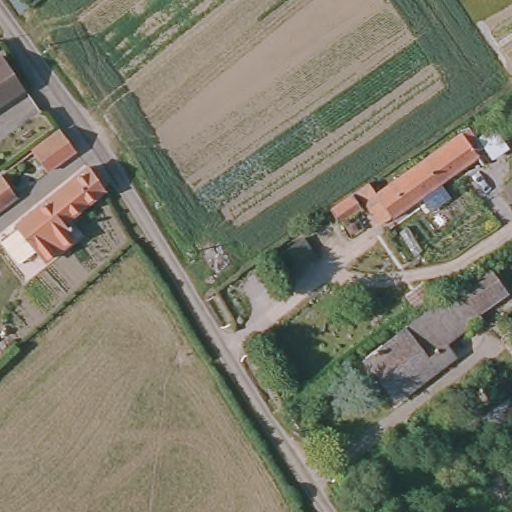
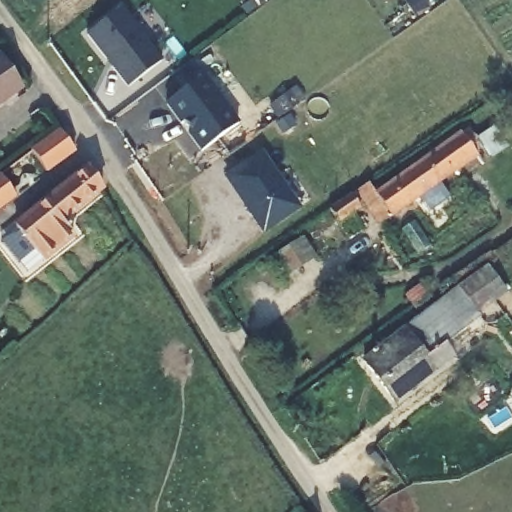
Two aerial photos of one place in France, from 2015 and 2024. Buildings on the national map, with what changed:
new [(120,8),(162,61),(127,87),(87,34),(120,8)]
unchanged [(0,103),(0,59),(20,89),(0,103)]
new [(202,74),(239,123),(200,151),(165,104),(202,74)]
unchanged [(478,141),(475,143),(480,149),(475,152),(477,155),(379,224),(356,191),(367,183),(376,193),(468,128),(478,141)]
unchanged [(31,151),(60,130),(75,150),(46,171),(31,151)]
new [(261,153),(298,208),(263,232),(226,177),(261,153)]
unchanged [(0,237),(11,228),(10,227),(83,167),(97,187),(56,220),(68,235),(37,260),(30,251),(15,264),(0,246),(0,237)]
unchanged [(0,206),(0,175),(15,195),(0,206)]
unchanged [(328,210),(351,194),(360,207),(338,223),(328,210)]
unchanged [(317,256),(284,277),(270,258),(302,237),(317,256)]
unchanged [(355,361),(478,267),(497,292),(468,313),(472,317),(436,344),(444,355),(385,400),(355,361)]
unchanged [(395,295),(410,284),(422,298),(407,309),(395,295)]
unchanged [(480,417),(512,395),(512,427),(495,439),(480,417)]

